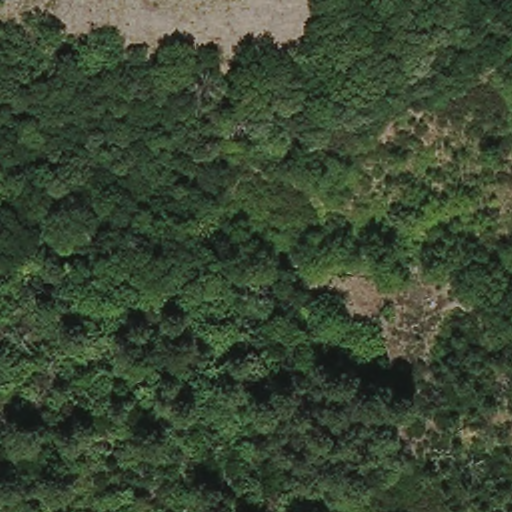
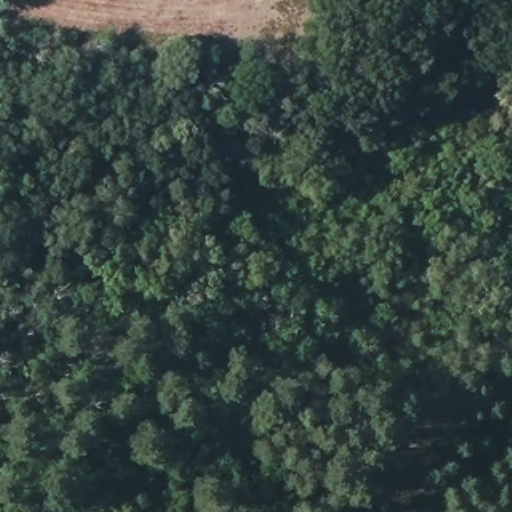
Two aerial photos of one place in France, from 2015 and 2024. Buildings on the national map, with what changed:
unchanged [(253,144),(252,165),(230,165),(230,143),(253,144)]

